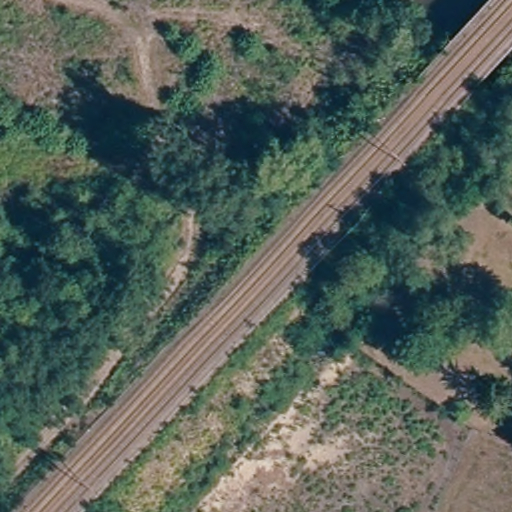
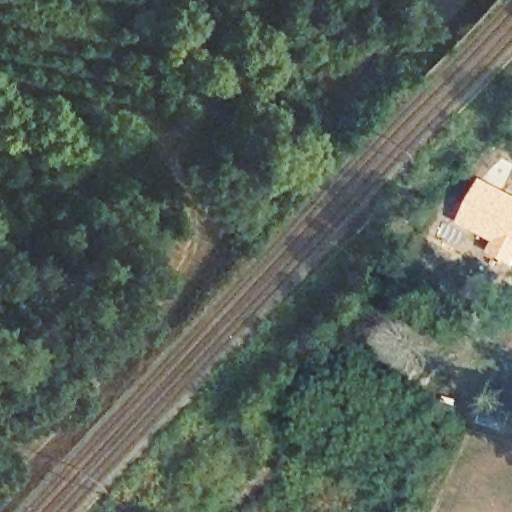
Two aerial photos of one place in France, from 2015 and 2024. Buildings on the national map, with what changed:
new [(512,194),(512,267),(512,268),(486,256),(492,242),(457,223),(481,178),(512,194)]

